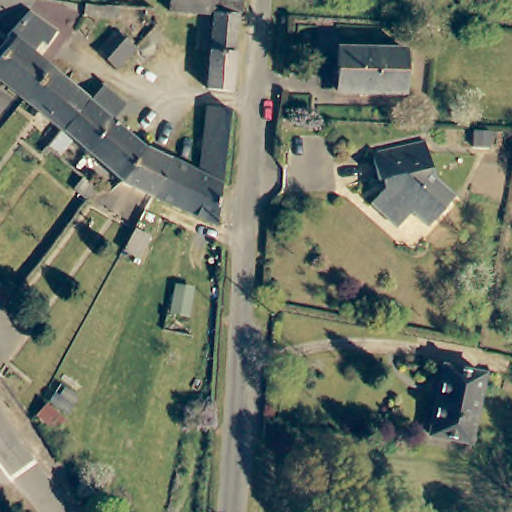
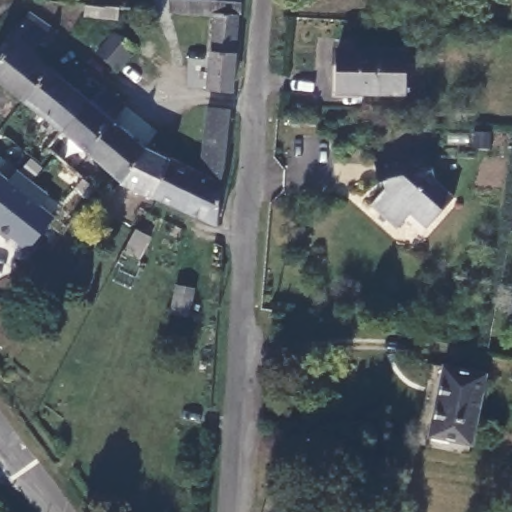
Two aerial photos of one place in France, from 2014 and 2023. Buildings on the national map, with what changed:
unchanged [(121,12),(88,10),(94,0),(121,0),(121,12)]
unchanged [(211,90),(212,80),(215,50),(218,15),(173,7),(173,5),(174,0),(244,0),(242,15),(240,15),(237,52),(234,92),(211,90)]
unchanged [(147,11),(148,2),(157,3),(158,12),(147,11)]
unchanged [(0,86),(0,57),(10,45),(4,40),(28,11),(56,34),(44,49),(39,45),(30,55),(48,70),(22,104),(0,86)]
unchanged [(95,52),(118,30),(141,49),(115,76),(95,52)]
unchanged [(411,91),(341,91),(341,47),(411,47),(411,91)]
unchanged [(22,104),(48,70),(86,101),(60,132),(22,104)]
unchanged [(86,101),(90,104),(103,89),(127,108),(114,123),(145,149),(124,181),(113,176),(60,132),(86,101)]
unchanged [(204,172),(211,106),(232,109),(227,160),(222,211),(220,225),(187,210),(199,171),(204,172)]
unchanged [(382,177),(378,177),(372,150),(425,139),(433,175),(454,193),(428,223),(412,209),(399,224),(372,201),(384,186),(382,177)]
unchanged [(42,155),(48,148),(54,152),(48,160),(42,155)]
unchanged [(173,160),(154,195),(124,181),(145,149),(173,160)]
unchanged [(199,171),(187,210),(154,195),(173,160),(199,171)]
new [(39,206),(53,216),(27,252),(10,239),(8,242),(0,236),(0,173),(9,180),(15,169),(48,195),(39,206)]
unchanged [(84,201),(73,191),(83,179),(94,187),(84,201)]
unchanged [(138,226),(154,235),(142,257),(127,249),(138,226)]
unchanged [(442,364),(483,372),(469,441),(429,432),(442,364)]

